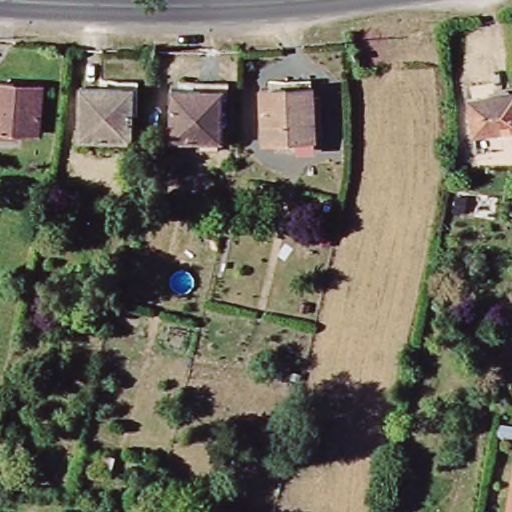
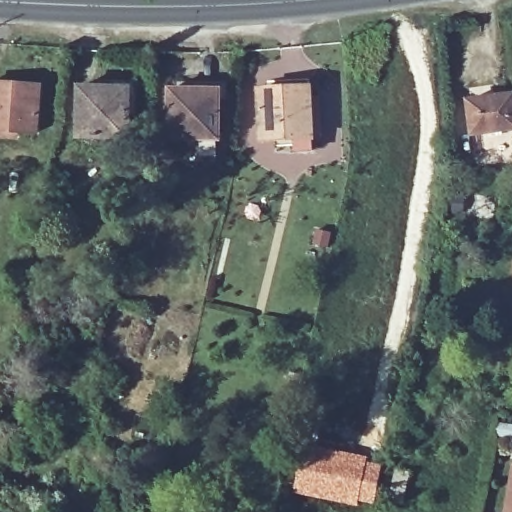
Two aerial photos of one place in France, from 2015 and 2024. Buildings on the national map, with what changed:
unchanged [(137,82),(133,120),(129,120),(127,141),(77,139),(81,87),(104,89),(107,81),(137,82)]
unchanged [(228,102),(224,102),(222,142),(171,138),(173,88),(200,90),(201,83),(229,85),(228,102)]
unchanged [(40,86),(36,131),(0,129),(0,84),(40,86)]
unchanged [(258,94),(278,92),(279,87),(302,86),(303,102),(306,140),(307,145),(261,149),(258,94)]
unchanged [(512,95),(512,133),(479,140),(475,118),(472,102),(512,95)]
unchanged [(330,99),(334,138),(306,140),(303,102),(330,99)]
unchanged [(509,268),(512,269),(512,291),(504,290),(509,268)]
new [(299,441),(368,456),(367,460),(382,463),(374,505),(357,501),(356,506),(290,492),(299,441)]
unchanged [(7,455),(0,481),(0,454),(7,455)]
new [(394,465),(412,468),(405,497),(388,494),(394,465)]

